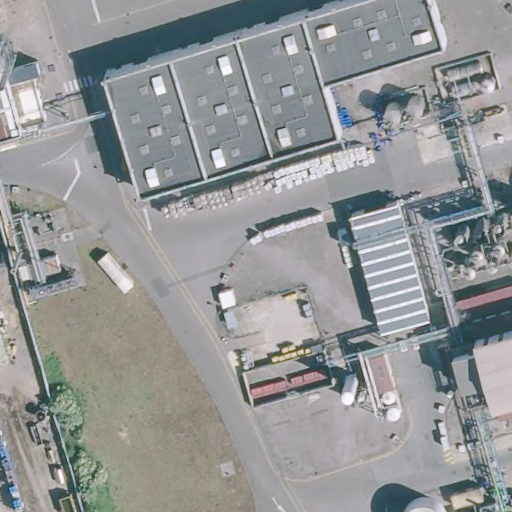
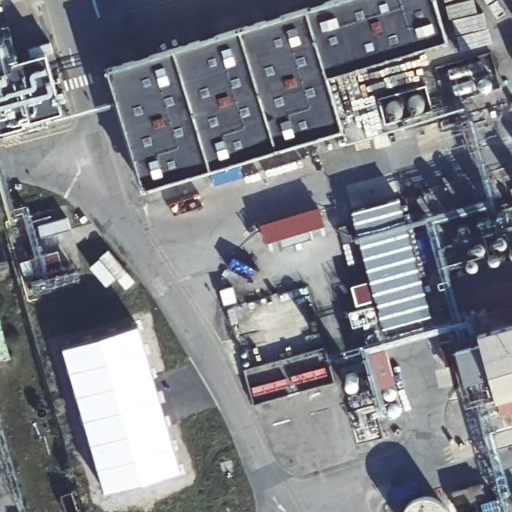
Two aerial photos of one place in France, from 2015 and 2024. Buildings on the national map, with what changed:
unchanged [(447,37),(329,74),(343,128),(139,191),(108,69),(340,0),(435,0),(447,37)]
unchanged [(7,64),(38,57),(52,112),(0,129),(0,45),(7,64)]
unchanged [(348,210),(398,196),(433,315),(380,326),(348,210)]
new [(264,242),(262,223),(289,219),(288,214),(321,209),(323,228),(310,230),(312,241),(282,245),(282,240),(264,242)]
unchanged [(512,411),(502,413),(487,373),(462,380),(453,345),(442,302),(512,282),(512,411)]
new [(10,358),(0,361),(0,320),(10,358)]
new [(181,470),(105,493),(62,345),(138,324),(181,470)]

